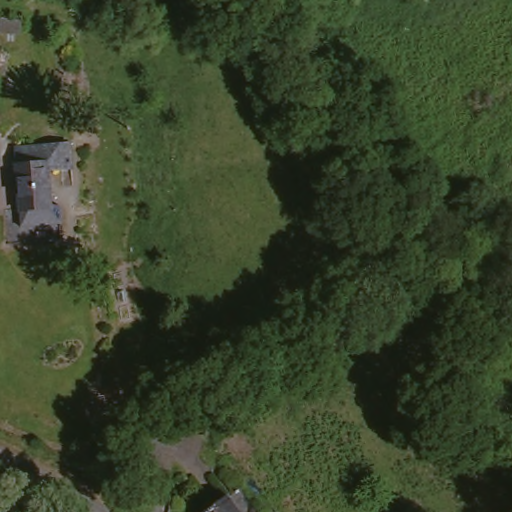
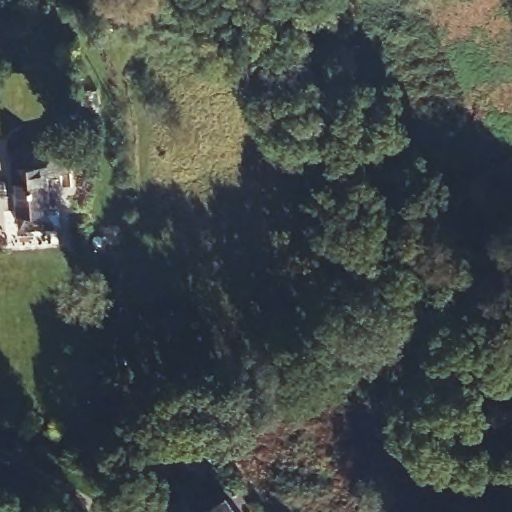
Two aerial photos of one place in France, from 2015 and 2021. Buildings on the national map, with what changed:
unchanged [(68,175),(43,174),(41,212),(59,213),(58,246),(0,244),(0,210),(11,211),(13,165),(14,148),(37,150),(38,147),(68,149),(68,175)]
unchanged [(210,512),(221,502),(229,512),(210,512)]

